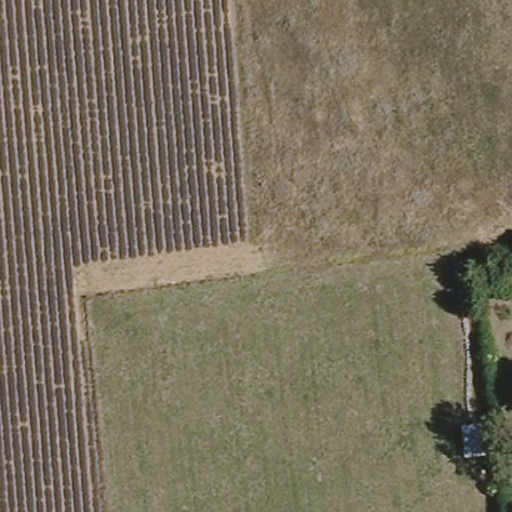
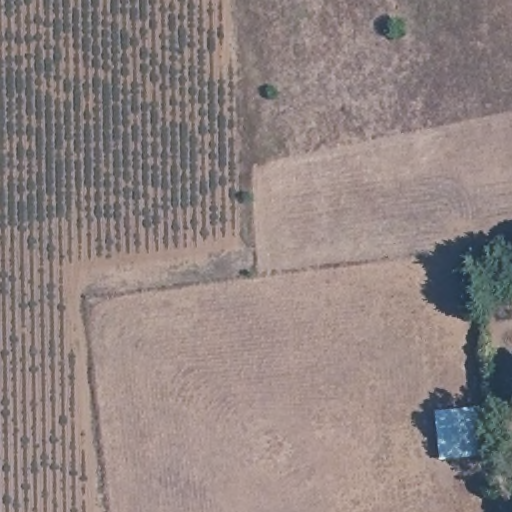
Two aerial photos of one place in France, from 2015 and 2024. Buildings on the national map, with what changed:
unchanged [(460,426),(480,422),(485,457),(464,458),(460,426)]

